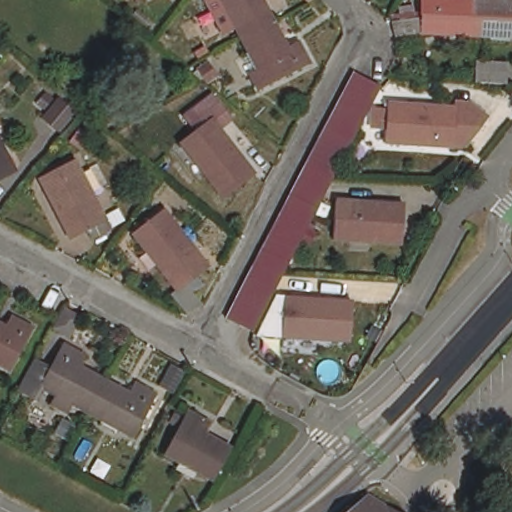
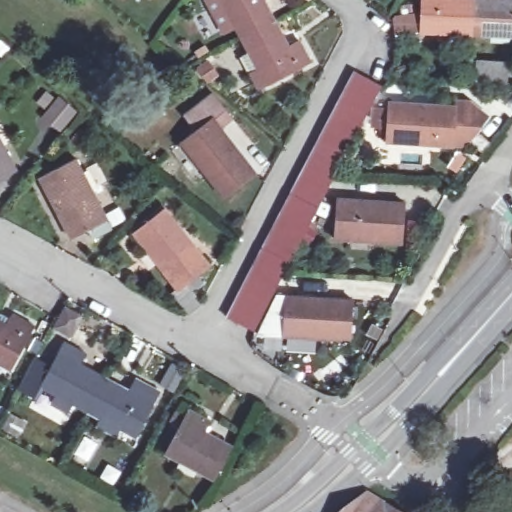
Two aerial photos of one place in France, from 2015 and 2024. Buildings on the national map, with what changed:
unchanged [(243,37),(235,22),(240,20),(232,5),(227,8),(223,0),(264,0),(275,21),(243,37)]
unchanged [(512,0),(512,35),(510,35),(510,30),(495,29),(494,34),(475,33),(457,33),(457,27),(440,26),(440,31),(422,31),(396,34),(391,20),(422,14),(423,0),(512,0)]
unchanged [(288,47),(300,41),(311,62),(261,88),(252,73),(260,69),(243,37),(275,21),(288,47)]
unchanged [(475,82),(476,60),(507,63),(506,84),(475,82)]
unchanged [(367,73),(381,81),(377,88),(367,109),(360,122),(360,123),(358,125),(353,136),(346,149),(342,156),(339,163),(333,174),(332,176),(325,190),(318,203),(311,217),(307,224),(305,230),(297,243),(290,257),(290,258),(283,270),(276,283),(272,292),(270,296),(255,325),(241,318),(228,312),(242,283),(250,270),(250,269),(256,256),(263,243),(271,229),(277,216),(285,203),(285,202),(291,189),(298,176),(302,168),(305,163),(312,149),(320,136),(320,134),(326,122),(333,109),(338,101),(340,95),(355,66),(367,73)]
unchanged [(232,118),(216,131),(239,161),(243,157),(255,173),(225,196),(206,172),(208,170),(186,141),(197,132),(186,116),(214,94),(232,118)]
unchanged [(77,111),(60,132),(43,118),(60,97),(77,111)]
unchanged [(388,103),(389,98),(401,98),(400,104),(437,106),(437,101),(456,102),(454,140),(425,138),(425,135),(387,133),(387,121),(375,121),(376,102),(388,103)]
unchanged [(2,144),(3,144),(17,170),(0,180),(0,141),(2,144)]
unchanged [(86,193),(90,192),(108,229),(90,238),(85,227),(67,236),(60,221),(63,218),(47,186),(42,188),(36,177),(70,160),(86,193)]
unchanged [(348,199),(348,204),(385,207),(385,201),(405,202),(402,242),(372,240),(372,237),(335,235),(337,198),(348,199)]
unchanged [(176,219),(172,222),(193,251),(198,248),(209,262),(177,287),(160,264),(161,262),(138,233),(168,209),(176,219)]
unchanged [(190,286),(202,302),(189,313),(176,297),(190,286)]
unchanged [(286,293),(286,290),(298,291),(298,296),(335,298),(336,293),(353,294),(351,334),(321,332),(321,329),(284,327),(285,315),(276,314),(276,293),(286,293)]
unchanged [(65,312),(78,319),(71,333),(58,325),(65,312)]
unchanged [(6,326),(13,315),(35,326),(10,369),(0,363),(0,323),(6,326)]
unchanged [(36,360),(36,361),(51,369),(65,343),(87,354),(80,366),(105,379),(129,392),(135,381),(158,393),(135,436),(119,427),(121,422),(106,414),(103,418),(88,410),(75,403),(68,415),(51,405),(57,394),(41,385),(36,394),(22,387),(36,360)]
unchanged [(190,409),(211,421),(205,433),(232,448),(215,479),(197,469),(200,464),(185,457),(183,461),(166,452),(190,409)]
unchanged [(346,509),(367,493),(399,512),(343,512),(346,509)]

